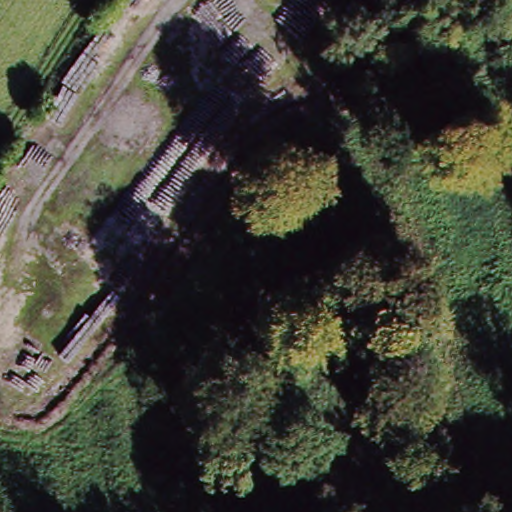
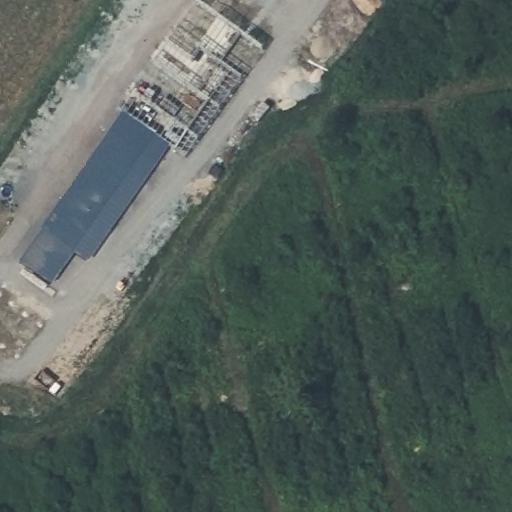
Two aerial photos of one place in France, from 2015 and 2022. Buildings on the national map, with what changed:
new [(170,146),(90,263),(75,253),(52,285),(19,261),(122,115),(170,146)]

